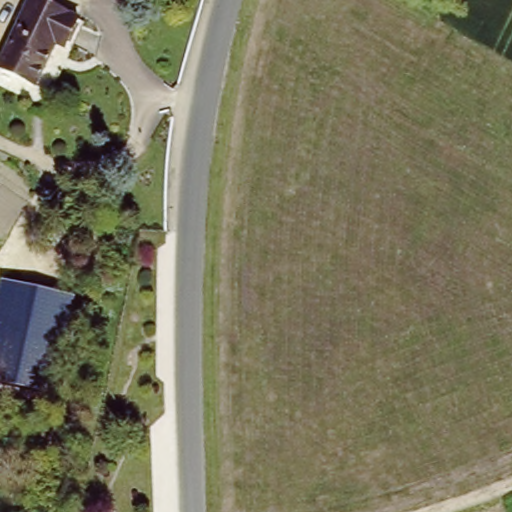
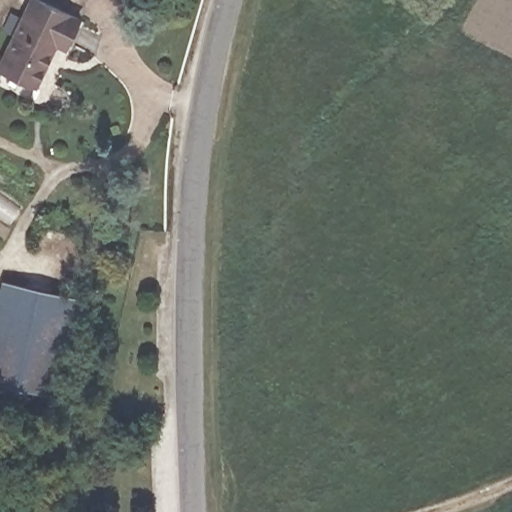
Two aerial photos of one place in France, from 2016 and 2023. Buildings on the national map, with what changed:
unchanged [(33,0),(39,0),(84,21),(70,49),(55,42),(35,82),(2,69),(33,0)]

